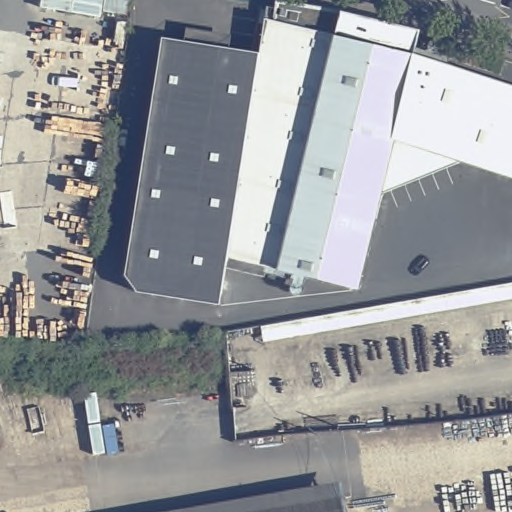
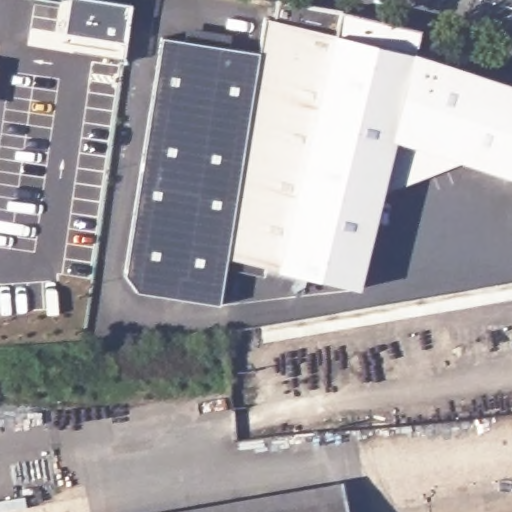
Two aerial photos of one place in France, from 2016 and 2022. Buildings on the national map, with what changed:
new [(65,0),(104,0),(128,4),(122,44),(60,34),(65,0)]
unchanged [(422,39),(417,54),(512,84),(512,173),(461,157),(391,135),(379,192),(361,287),(228,266),(253,112),(261,60),(262,52),(269,7),(343,19),(422,39)]
unchanged [(161,35),(262,52),(261,60),(253,112),(228,266),(220,305),(136,292),(123,276),(161,35)]
unchanged [(461,157),(379,192),(391,135),(461,157)]
unchanged [(512,301),(265,344),(260,325),(512,281),(512,301)]
unchanged [(350,512),(239,512),(347,494),(350,512)]

